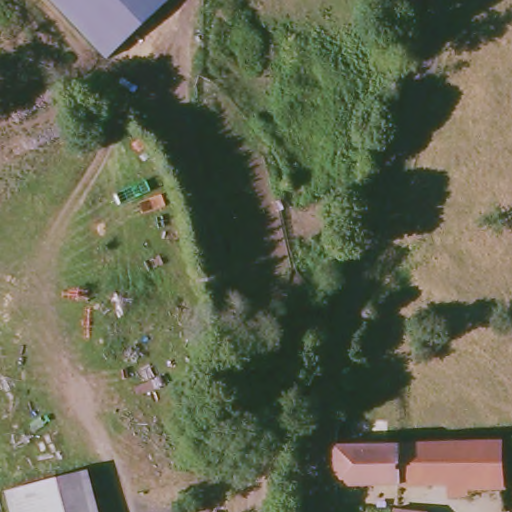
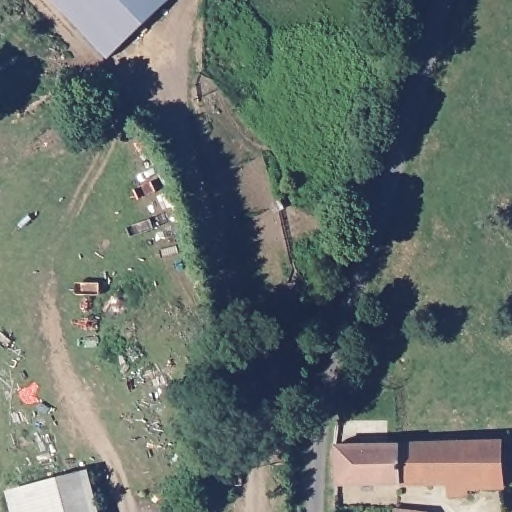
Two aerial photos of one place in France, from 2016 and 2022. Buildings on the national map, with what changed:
unchanged [(112,64),(52,0),(180,0),(112,64)]
unchanged [(452,497),(452,485),(340,486),(340,446),(400,445),(507,442),(507,487),(472,489),(473,496),(452,497)]
unchanged [(87,472),(97,512),(12,512),(7,493),(87,472)]
unchanged [(415,512),(394,512),(394,510),(415,512)]

